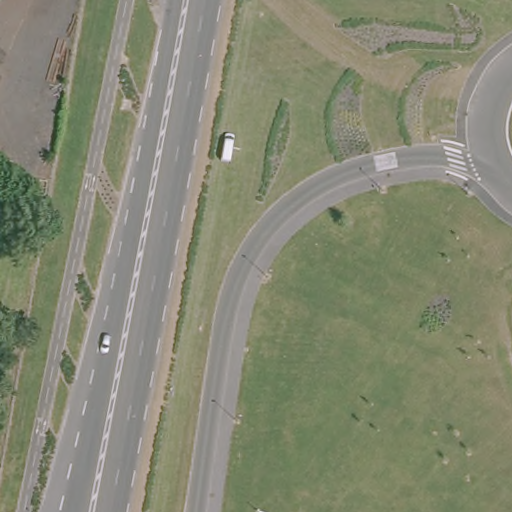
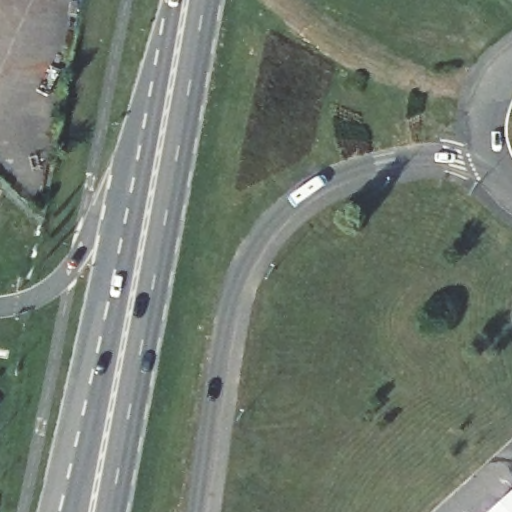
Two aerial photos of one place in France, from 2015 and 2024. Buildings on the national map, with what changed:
new [(512,493),(512,512),(491,512),(512,493)]

